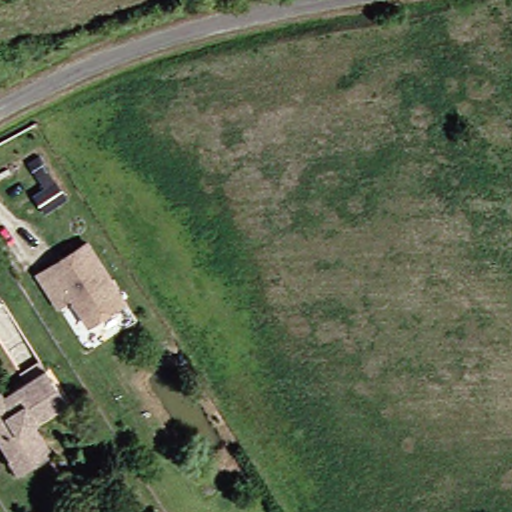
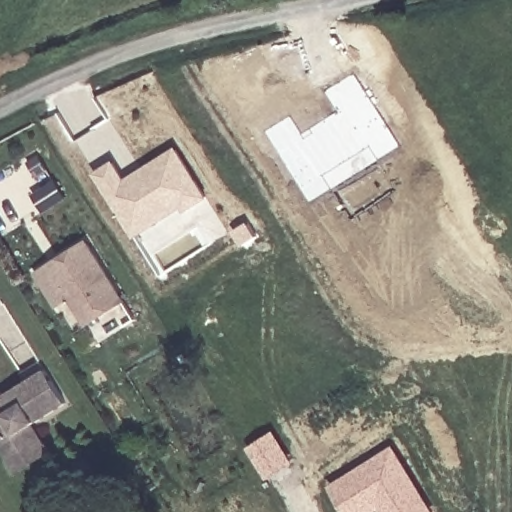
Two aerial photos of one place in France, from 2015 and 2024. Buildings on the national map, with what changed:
new [(311,202),(266,131),(290,115),(302,134),(337,112),(325,91),(351,74),(397,147),(311,202)]
new [(186,212),(184,208),(135,240),(93,174),(114,160),(126,179),(176,147),(210,198),(186,212)]
new [(46,214),(33,195),(44,187),(37,177),(49,171),(67,200),(46,214)]
unchanged [(124,303),(85,325),(68,299),(55,307),(32,277),(84,244),(124,303)]
unchanged [(2,455),(0,452),(0,390),(20,377),(13,367),(34,356),(40,365),(61,398),(25,420),(41,448),(10,470),(2,455)]
new [(266,481),(246,448),(273,431),(295,462),(266,481)]
new [(380,509),(376,512),(344,512),(329,486),(393,445),(437,512),(382,512),(380,509)]

